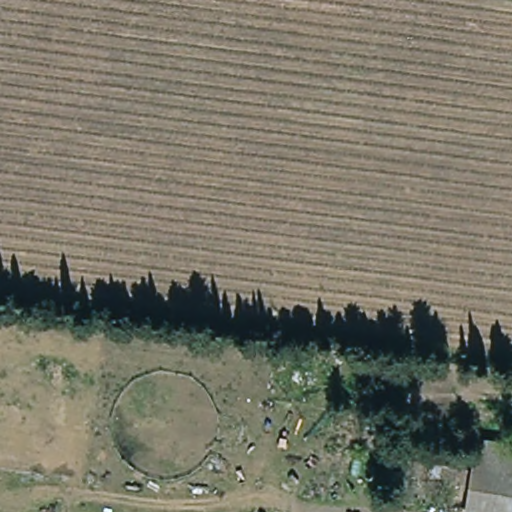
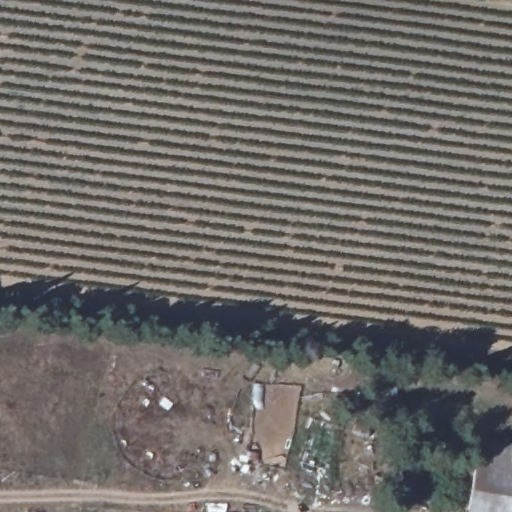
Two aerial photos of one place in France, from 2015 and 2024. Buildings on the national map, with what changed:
unchanged [(449,468),(472,471),(476,440),(512,445),(512,512),(465,512),(469,488),(447,485),(449,468)]

